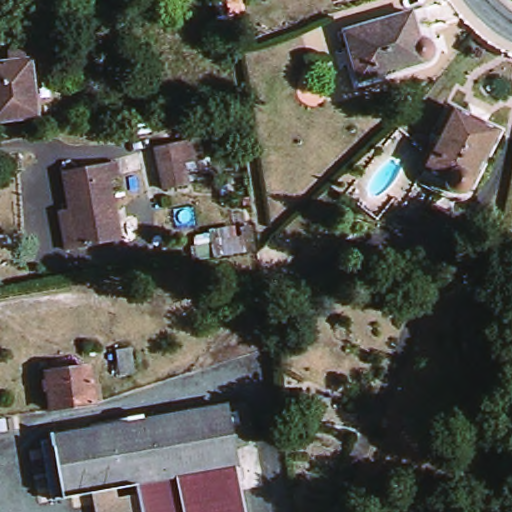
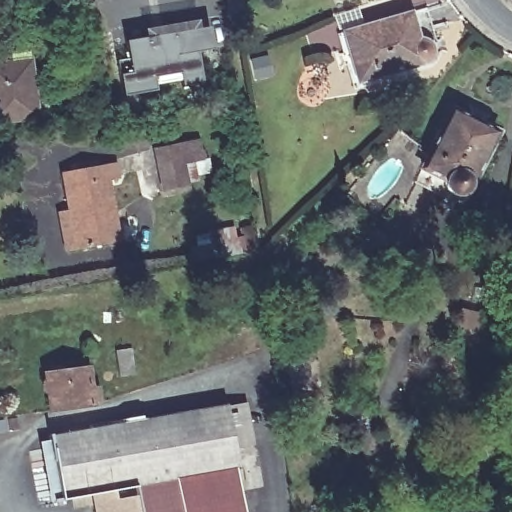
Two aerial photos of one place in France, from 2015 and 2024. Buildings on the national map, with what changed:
unchanged [(227,30),(217,31),(212,2),(224,1),(227,30)]
unchanged [(409,14),(417,39),(420,39),(422,39),(424,40),(426,41),(428,43),(429,45),(430,46),(431,49),(431,50),(430,53),(430,56),(429,57),(427,60),(426,61),(425,62),(422,64),(417,64),(357,82),(342,32),(409,14)]
new [(155,88),(122,94),(118,73),(116,60),(127,58),(125,40),(144,37),(142,27),(196,17),(197,26),(207,25),(212,45),(195,49),(201,80),(181,84),(179,77),(154,82),(155,88)]
unchanged [(0,64),(7,63),(6,53),(27,50),(29,61),(36,117),(0,122),(0,64)]
unchanged [(491,135),(466,181),(467,183),(467,185),(466,189),(464,190),(462,192),(460,193),(457,194),(455,194),(454,194),(450,193),(447,192),(446,191),(444,190),(443,189),(442,186),(442,185),(441,180),(442,179),(442,177),(443,175),(423,165),(450,115),(491,135)]
unchanged [(199,140),(202,161),(187,164),(191,187),(165,192),(157,148),(199,140)]
unchanged [(60,211),(72,210),(65,172),(120,162),(124,178),(111,181),(122,241),(78,248),(67,250),(60,211)]
unchanged [(206,230),(226,227),(223,212),(245,208),(253,254),(211,261),(206,230)]
unchanged [(130,348),(134,375),(119,377),(114,350),(130,348)]
unchanged [(46,397),(42,395),(40,381),(43,378),(42,373),(85,367),(91,405),(47,411),(46,397)]
unchanged [(48,441),(205,415),(201,394),(242,387),(252,448),(230,451),(237,489),(241,512),(137,512),(135,500),(133,490),(51,503),(45,464),(52,463),(48,441)]
unchanged [(507,426),(512,460),(512,473),(490,475),(479,429),(507,426)]
unchanged [(137,512),(107,512),(107,505),(135,500),(137,512)]
unchanged [(95,512),(95,507),(107,505),(107,512),(95,512)]

